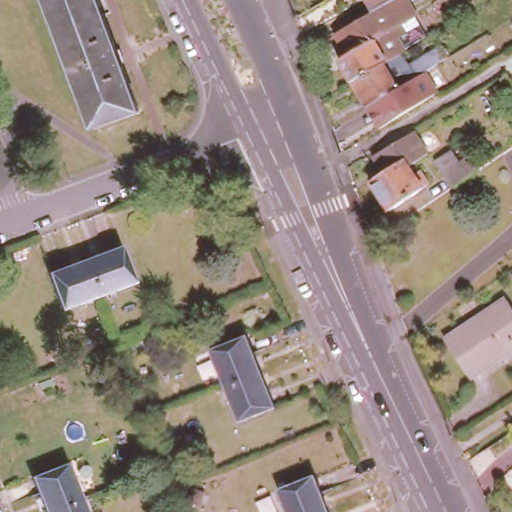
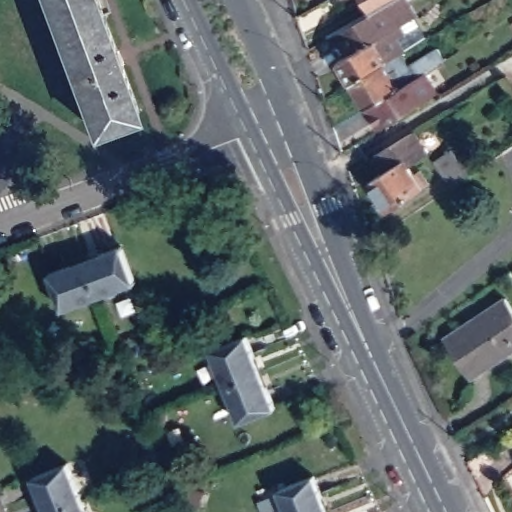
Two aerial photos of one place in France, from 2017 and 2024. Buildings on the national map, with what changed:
unchanged [(144,110),(99,128),(51,0),(103,0),(144,110)]
unchanged [(372,12),(393,0),(407,0),(417,17),(392,31),(352,54),(337,32),(357,21),(372,12)]
unchanged [(364,0),(393,0),(372,12),(364,0)]
unchanged [(429,37),(404,53),(354,82),(342,61),(352,54),(392,31),(417,17),(429,37)]
unchanged [(417,76),(368,106),(354,82),(404,53),(410,64),(440,46),(447,58),(417,76)]
unchanged [(410,165),(415,172),(421,168),(430,181),(390,208),(372,179),(385,171),(374,155),(414,131),(429,153),(410,165)]
unchanged [(460,157),(469,150),(478,164),(453,182),(437,157),(452,146),(460,157)]
unchanged [(137,281),(102,293),(89,259),(124,246),(137,281)]
unchanged [(65,307),(52,272),(89,259),(102,293),(65,307)]
unchanged [(444,343),(505,303),(512,314),(512,355),(495,366),(484,373),(470,383),(444,343)]
unchanged [(215,347),(250,334),(264,369),(229,383),(215,347)]
unchanged [(264,369),(279,405),(242,419),(229,383),(264,369)]
unchanged [(37,475),(72,462),(85,497),(50,512),(37,475)]
unchanged [(317,475),(330,510),(326,512),(291,512),(282,489),(317,475)]
unchanged [(50,512),(85,497),(92,512),(50,512)]
unchanged [(326,512),(330,510),(331,512),(326,512)]

